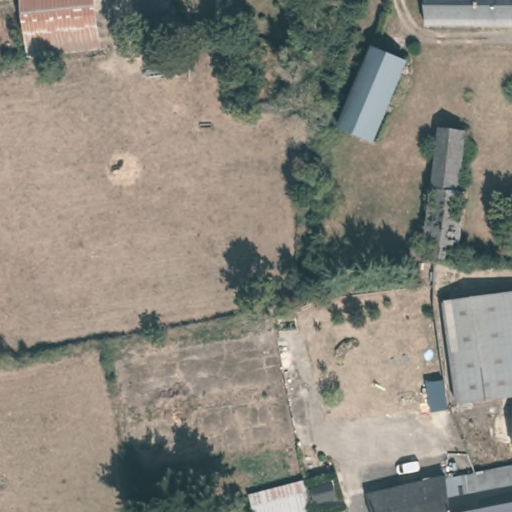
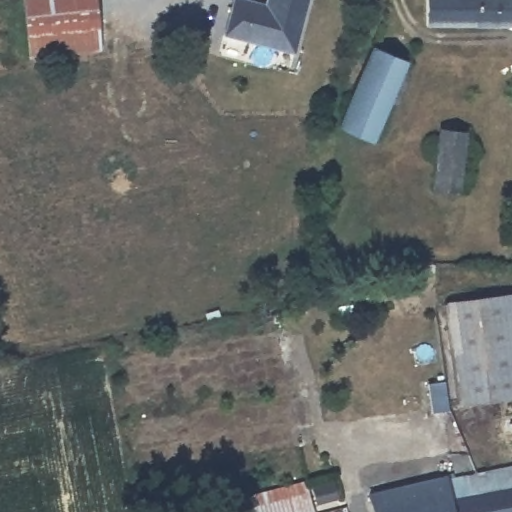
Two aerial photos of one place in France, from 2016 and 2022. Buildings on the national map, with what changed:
unchanged [(77,6),(20,12),(19,0),(105,0),(105,3),(77,6)]
new [(221,35),(230,0),(256,0),(265,2),(265,0),(309,0),(295,55),(221,35)]
unchanged [(431,0),(512,0),(512,26),(430,25),(431,0)]
unchanged [(77,6),(105,3),(109,54),(24,61),(20,12),(77,6)]
unchanged [(372,46),(407,59),(372,143),(340,132),(372,46)]
new [(436,190),(440,131),(463,132),(460,192),(436,190)]
unchanged [(448,301),(512,294),(512,399),(459,405),(448,301)]
unchanged [(512,512),(482,512),(477,490),(480,489),(477,472),(512,466),(512,512)]
unchanged [(477,472),(480,489),(477,490),(482,512),(372,512),(365,489),(477,472)]
unchanged [(306,483),(312,512),(253,512),(250,495),(306,483)]

